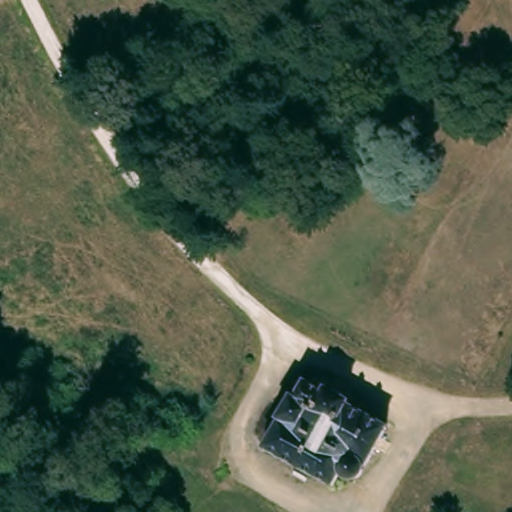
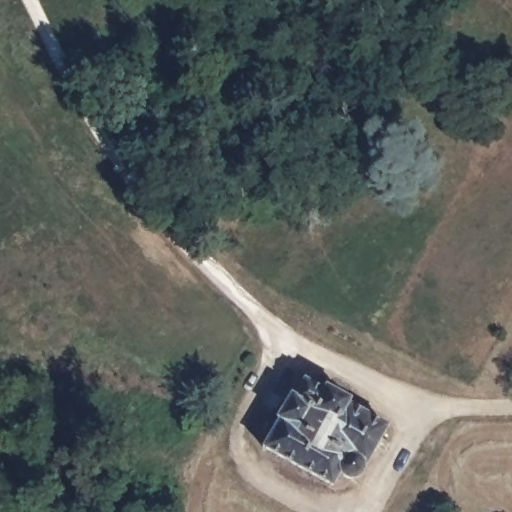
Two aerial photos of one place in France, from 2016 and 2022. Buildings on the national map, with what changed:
unchanged [(360,462),(361,465),(359,473),(354,475),(347,473),(341,466),(328,485),(261,445),(277,418),(273,415),(289,389),(293,391),(305,375),(323,385),(326,380),(349,395),(346,400),(385,420),(360,462)]

